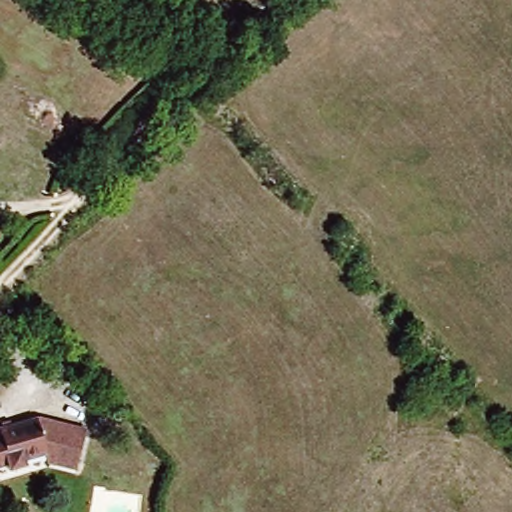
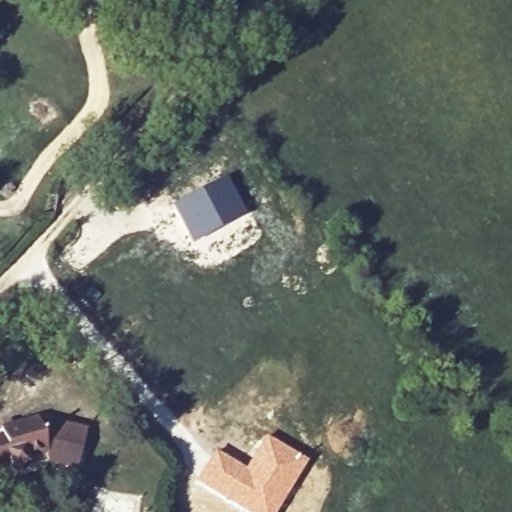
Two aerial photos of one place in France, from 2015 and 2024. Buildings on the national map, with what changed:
new [(228,175),(248,214),(193,244),(173,204),(228,175)]
unchanged [(82,424),(74,462),(42,458),(41,452),(20,456),(21,463),(8,464),(7,461),(0,462),(0,425),(35,417),(82,424)]
new [(215,452),(244,469),(265,437),(307,463),(277,512),(241,512),(194,483),(215,452)]
new [(95,489),(138,497),(136,512),(92,512),(95,489)]

